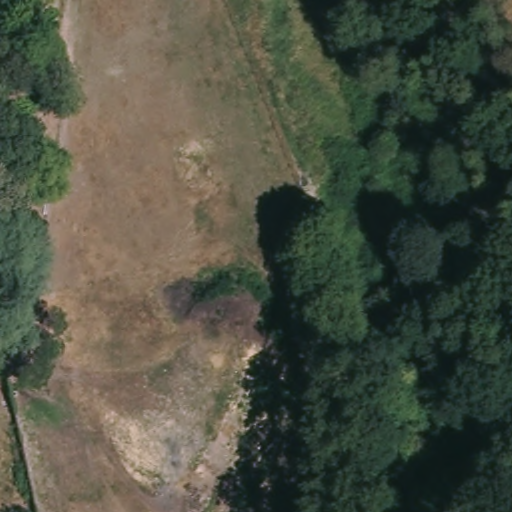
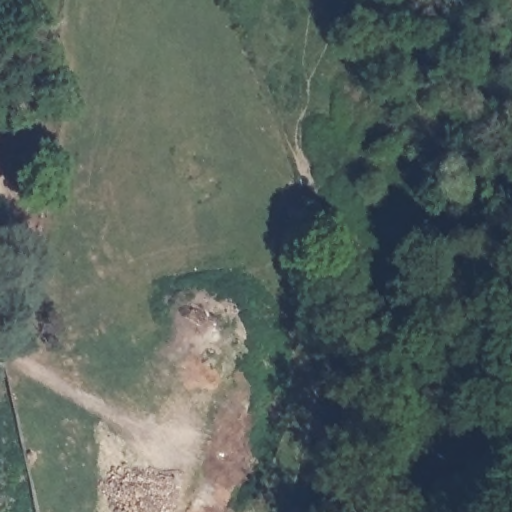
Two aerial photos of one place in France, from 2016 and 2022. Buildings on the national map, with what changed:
unchanged [(8,366),(10,377),(0,378),(0,359),(7,358),(8,366)]

